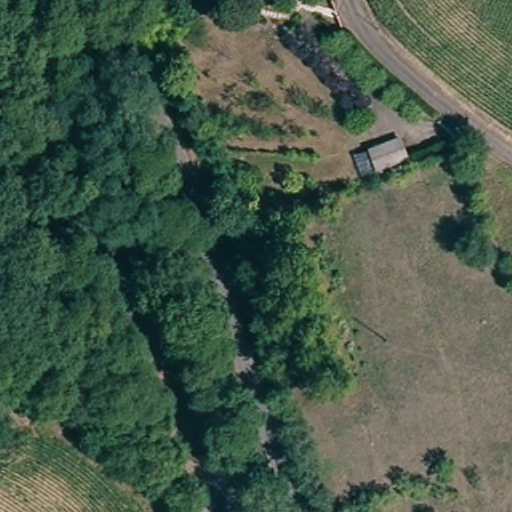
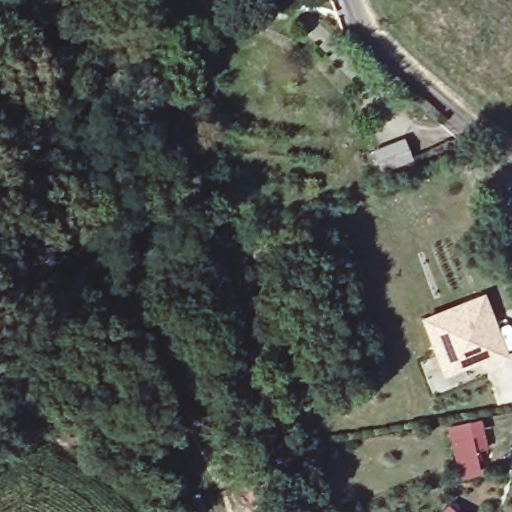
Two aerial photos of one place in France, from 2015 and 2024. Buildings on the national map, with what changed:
unchanged [(411,161),(377,172),(362,176),(354,155),(368,149),(400,136),(411,161)]
new [(480,366),(478,360),(441,375),(419,316),(482,292),(506,356),(480,366)]
new [(485,448),(472,450),(476,473),(455,477),(445,423),(479,416),(485,448)]
new [(444,505),(452,512),(437,512),(444,505)]

